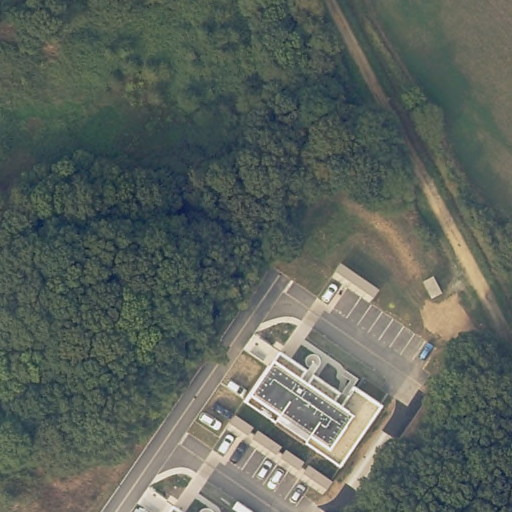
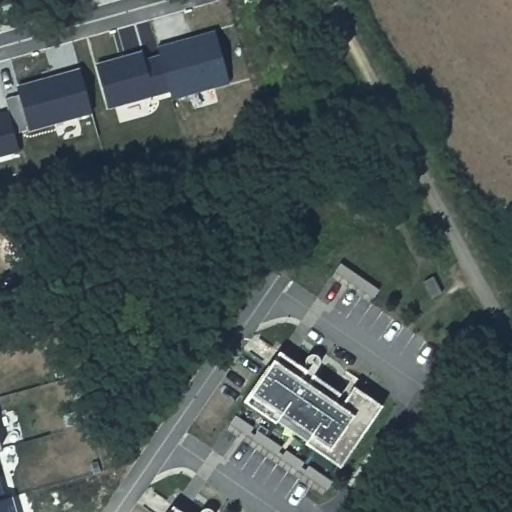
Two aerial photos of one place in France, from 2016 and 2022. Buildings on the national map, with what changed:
new [(232,83),(172,99),(171,91),(110,108),(96,64),(145,50),(146,57),(160,53),(158,47),(216,30),(232,83)]
new [(92,112),(29,130),(17,86),(79,67),(92,112)]
new [(7,112),(19,152),(0,156),(0,115),(7,112)]
unchanged [(350,389),(356,381),(391,406),(347,473),(240,401),(277,344),(350,389)]
new [(2,446),(0,446),(0,440),(2,446)]
new [(4,498),(0,499),(0,485),(4,498)]
unchanged [(184,512),(168,512),(173,505),(184,512)]

